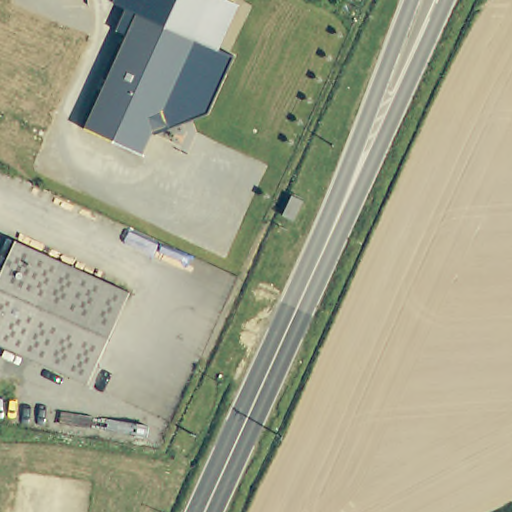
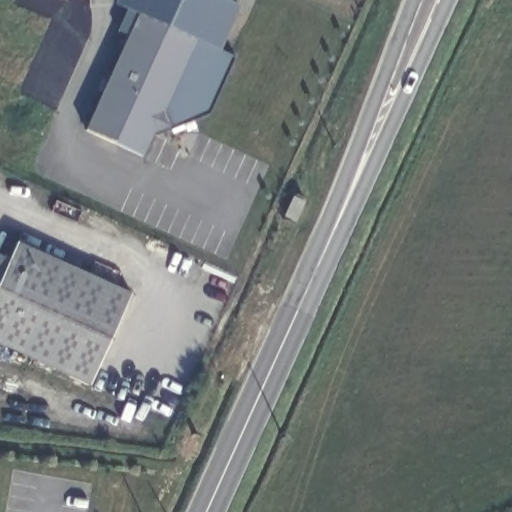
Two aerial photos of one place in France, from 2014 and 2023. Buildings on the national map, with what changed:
unchanged [(125,31),(116,27),(126,6),(114,0),(233,0),(235,1),(214,46),(192,36),(160,106),(166,121),(152,128),(140,153),(82,126),(125,31)]
unchanged [(234,55),(210,110),(166,121),(160,106),(192,36),(214,46),(234,55)]
unchanged [(134,294),(95,383),(0,340),(0,250),(13,257),(19,242),(134,294)]

